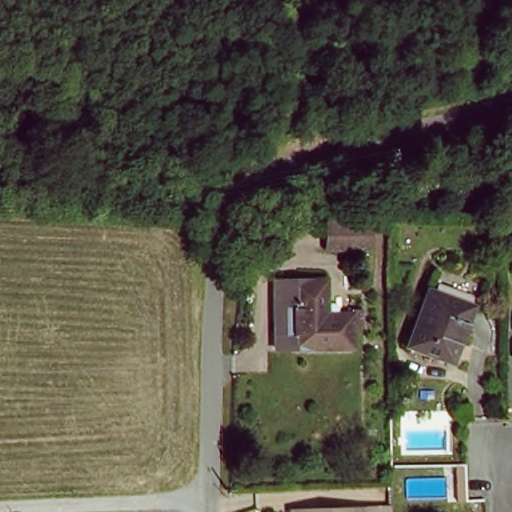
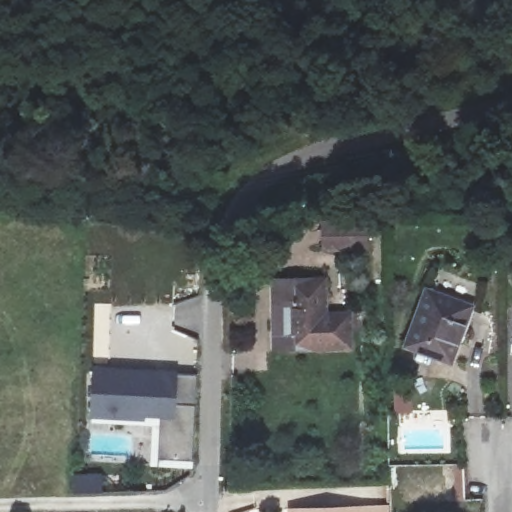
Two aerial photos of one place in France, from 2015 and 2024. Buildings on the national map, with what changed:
unchanged [(366,225),(366,252),(328,252),(328,224),(366,225)]
unchanged [(289,303),(297,305),(299,282),(327,284),(324,318),(347,319),(348,314),(363,315),(361,336),(346,335),(345,354),(285,349),(289,303)]
unchanged [(424,290),(467,306),(451,357),(408,342),(424,290)]
new [(149,467),(151,427),(91,423),(91,418),(94,371),(196,376),(191,463),(191,470),(149,467)]
new [(85,479),(103,478),(103,495),(85,495),(74,495),(75,478),(85,479)]
unchanged [(287,512),(287,506),(387,504),(387,512),(287,512)]

